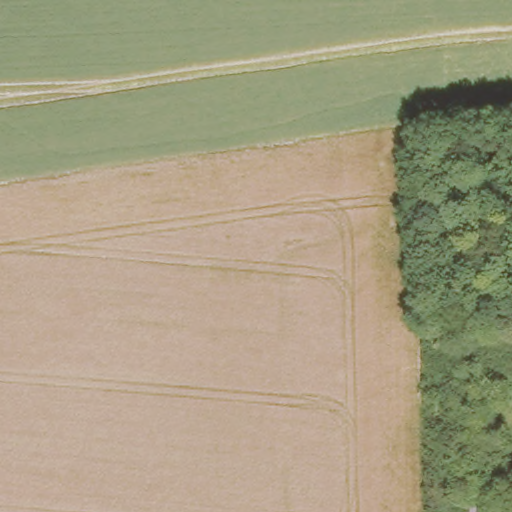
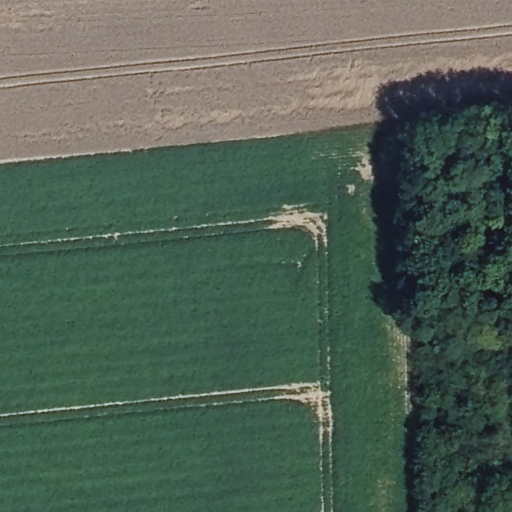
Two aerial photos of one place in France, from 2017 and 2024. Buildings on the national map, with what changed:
unchanged [(498,505),(498,512),(467,512),(467,505),(498,505)]

